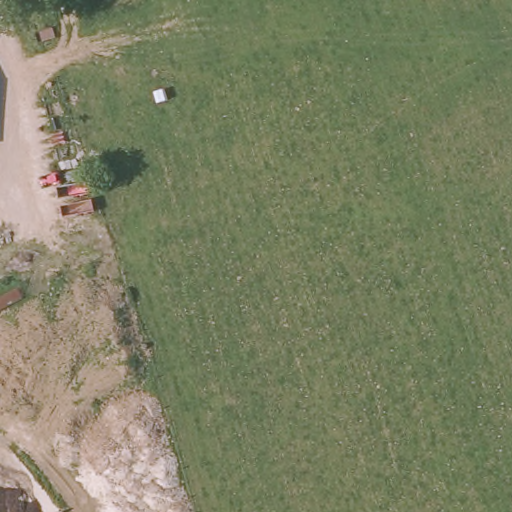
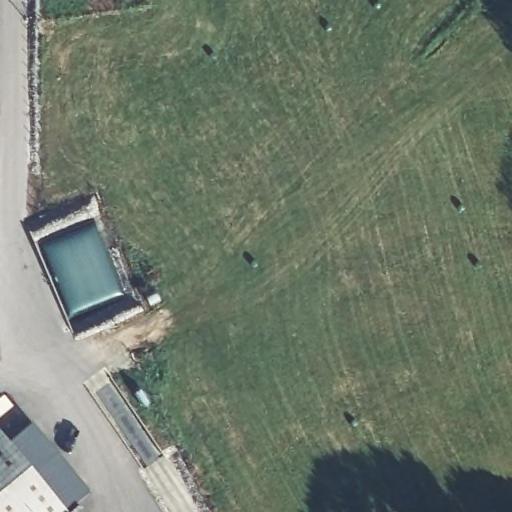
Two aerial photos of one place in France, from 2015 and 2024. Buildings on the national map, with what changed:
new [(32,426),(90,495),(69,512),(0,512),(0,439),(6,446),(32,426)]

